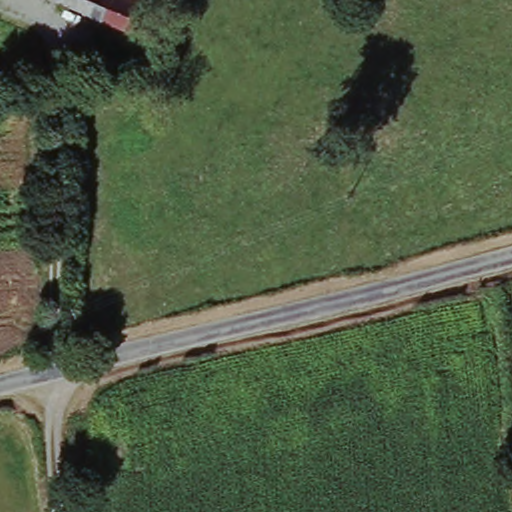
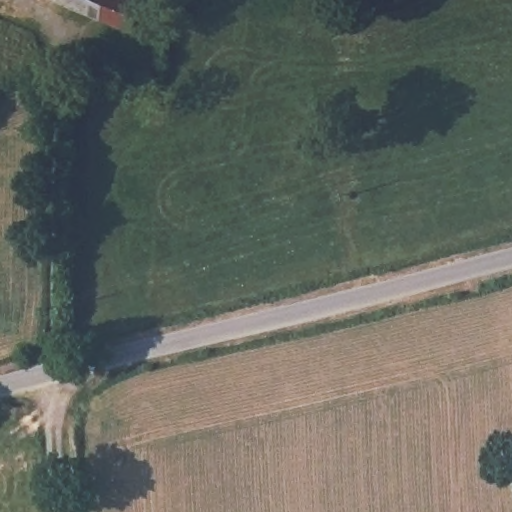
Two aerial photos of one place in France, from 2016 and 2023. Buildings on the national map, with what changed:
unchanged [(63,0),(145,0),(133,30),(63,0)]

